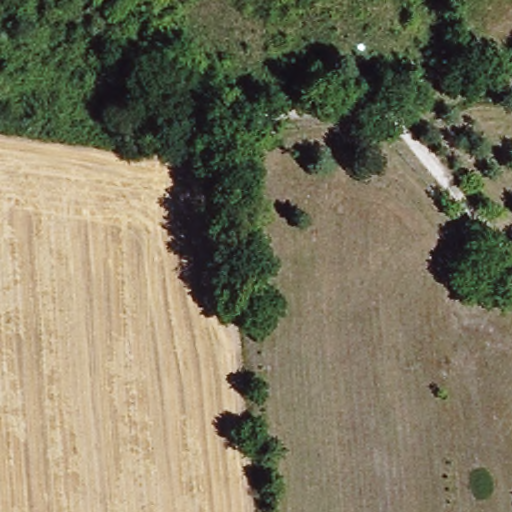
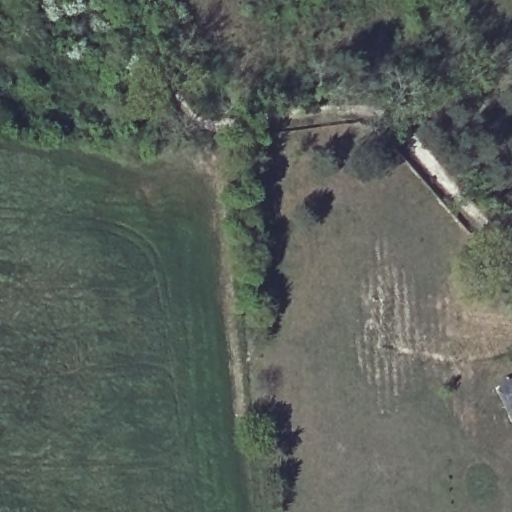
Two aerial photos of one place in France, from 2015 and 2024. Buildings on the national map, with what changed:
new [(512,377),(512,421),(493,386),(512,377)]

